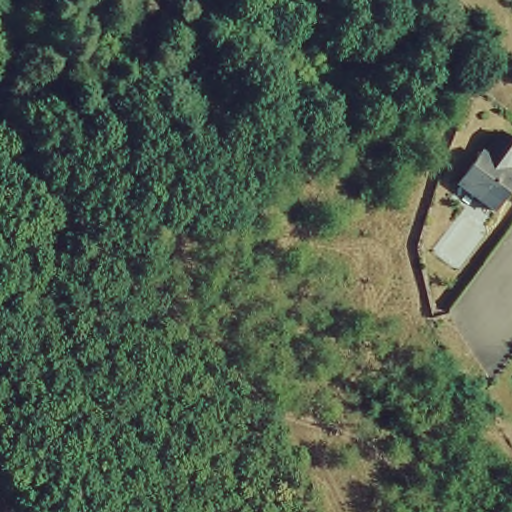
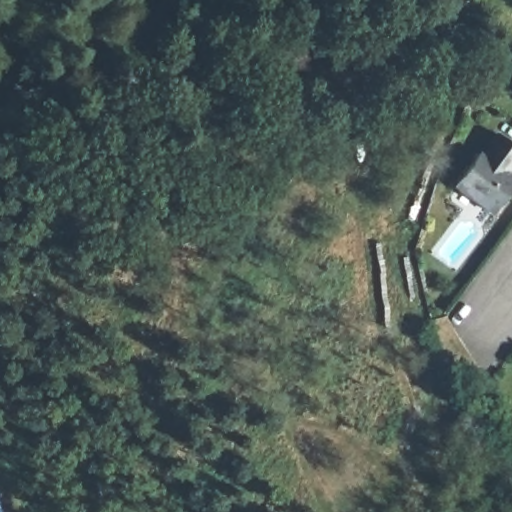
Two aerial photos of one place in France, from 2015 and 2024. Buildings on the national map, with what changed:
unchanged [(465,186),(488,154),(491,156),(507,134),(512,137),(512,198),(501,212),(465,186)]

